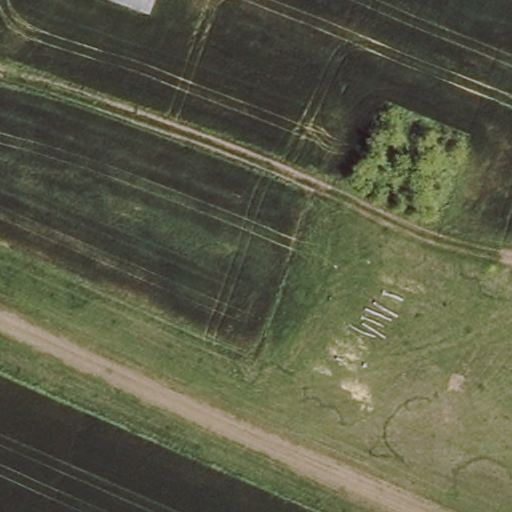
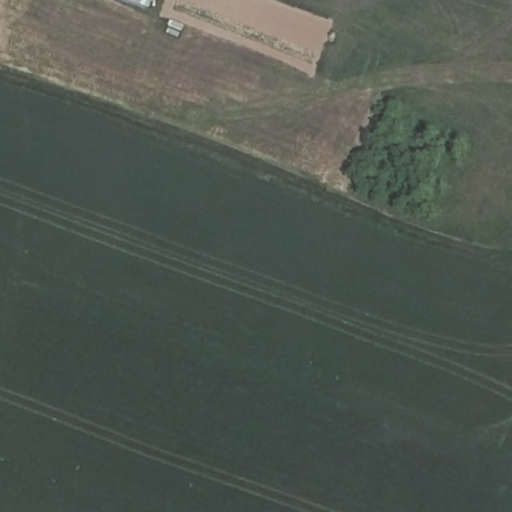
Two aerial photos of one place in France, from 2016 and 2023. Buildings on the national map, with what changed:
unchanged [(115,0),(152,0),(147,12),(115,0)]

